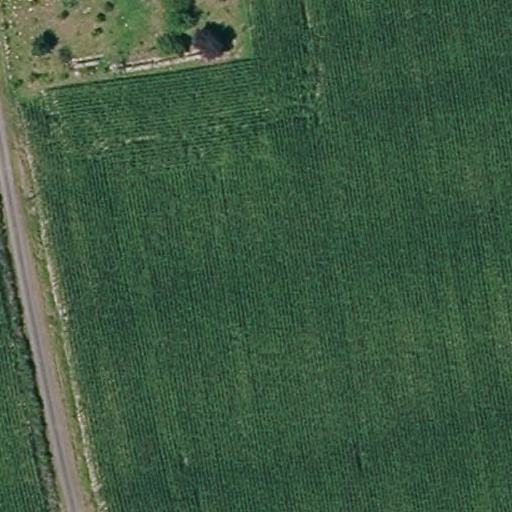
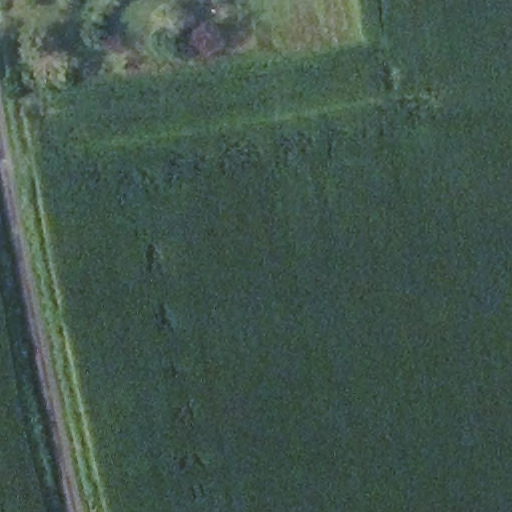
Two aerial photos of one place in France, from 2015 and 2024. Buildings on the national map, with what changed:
[]

